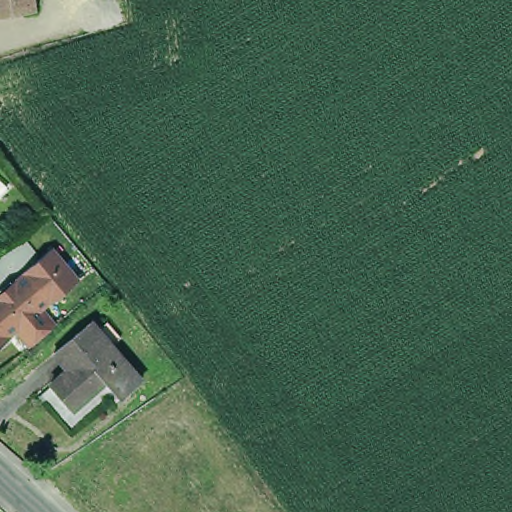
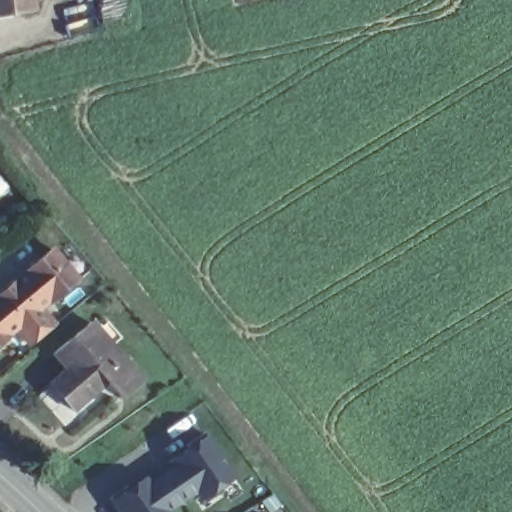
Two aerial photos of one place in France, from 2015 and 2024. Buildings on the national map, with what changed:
unchanged [(37,10),(5,15),(0,16),(0,0),(35,0),(37,10)]
unchanged [(81,279),(45,305),(57,322),(26,349),(17,336),(0,348),(0,290),(53,244),(81,279)]
unchanged [(117,389),(110,382),(101,371),(67,400),(46,375),(64,359),(50,342),(85,312),(92,319),(102,309),(116,325),(105,334),(137,371),(117,389)]
unchanged [(67,400),(101,371),(110,382),(65,422),(34,385),(46,375),(67,400)]
new [(177,465),(172,459),(205,437),(233,478),(201,500),(195,492),(182,502),(162,475),(177,465)]
new [(144,479),(148,484),(162,475),(182,502),(167,512),(119,512),(112,501),(144,479)]

